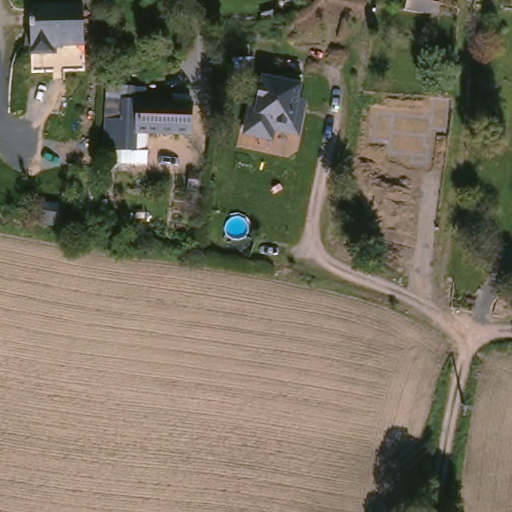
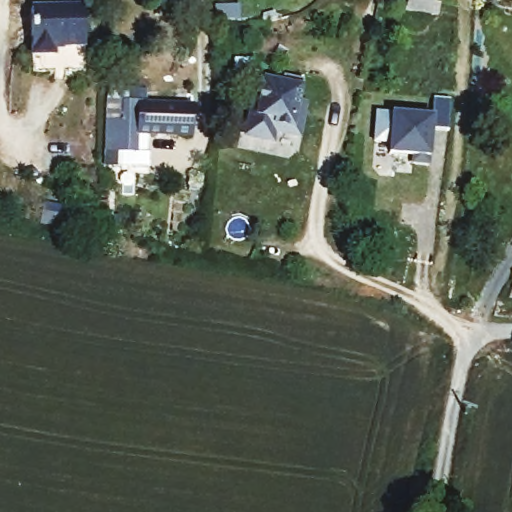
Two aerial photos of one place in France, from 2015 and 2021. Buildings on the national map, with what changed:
unchanged [(417,6),(395,2),(395,0),(419,0),(417,6)]
unchanged [(77,7),(77,47),(56,46),(56,54),(25,53),(25,6),(77,7)]
unchanged [(256,29),(255,42),(219,40),(220,28),(256,29)]
unchanged [(261,100),(262,75),(281,77),(282,68),(302,69),(301,91),(303,92),(303,105),(306,105),(304,125),(279,124),(278,134),(252,132),(254,110),(255,99),(261,100)]
unchanged [(101,150),(102,136),(108,78),(132,80),(132,89),(141,90),(141,92),(140,101),(137,123),(131,122),(130,132),(129,140),(127,154),(101,150)]
new [(432,130),(431,145),(432,146),(429,167),(412,165),(413,157),(388,155),(389,143),(374,142),(377,112),(393,114),(433,116),(433,98),(450,100),(447,132),(432,130)]
unchanged [(193,104),(192,138),(130,132),(131,122),(137,123),(140,101),(193,104)]

